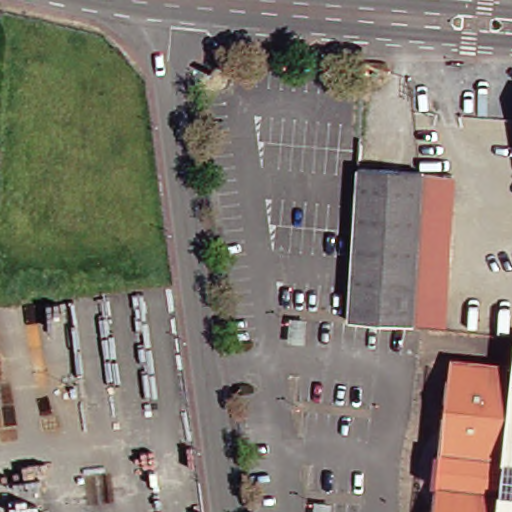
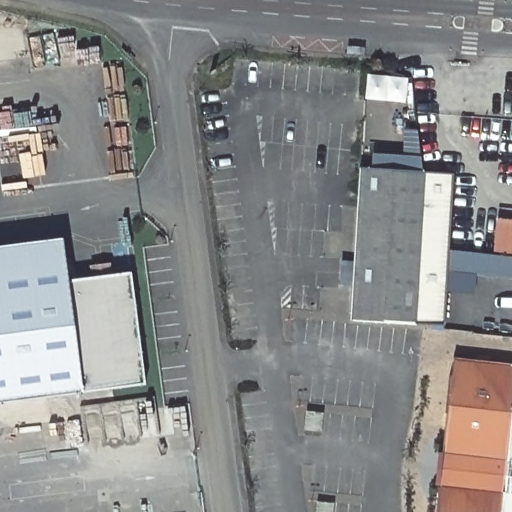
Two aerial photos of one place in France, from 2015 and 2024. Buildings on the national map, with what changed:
unchanged [(423,172),(414,324),(349,320),(358,168),(423,172)]
unchanged [(453,174),(444,325),(414,324),(423,172),(453,174)]
new [(501,220),(512,222),(512,254),(497,252),(501,220)]
new [(67,280),(0,289),(0,247),(61,239),(67,280)]
new [(130,271),(144,383),(77,392),(0,402),(0,289),(67,280),(130,271)]
unchanged [(421,497),(415,487),(415,469),(418,455),(424,448),(436,441),(446,358),(510,366),(512,348),(512,512),(428,512),(429,505),(421,497)]

